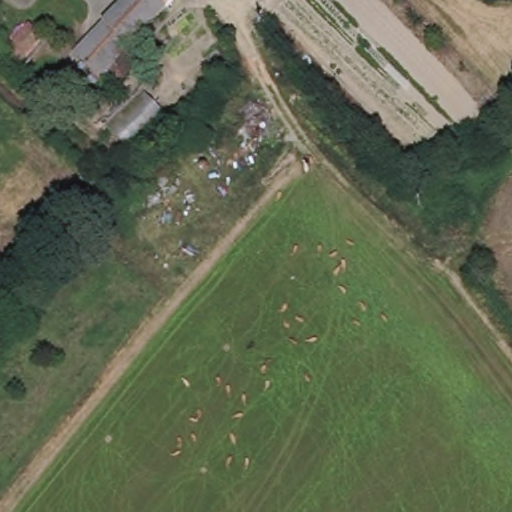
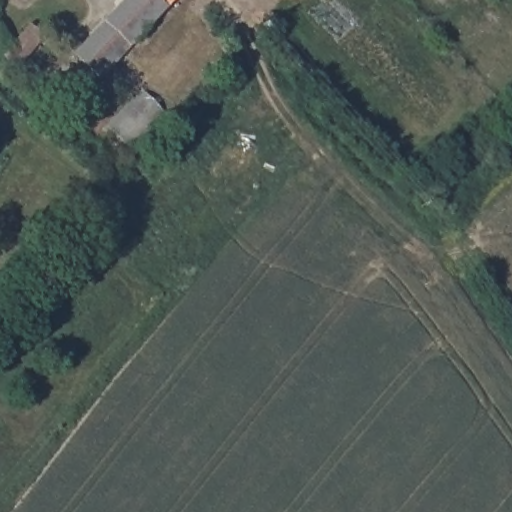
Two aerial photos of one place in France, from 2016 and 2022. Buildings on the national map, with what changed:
unchanged [(77,51),(125,0),(176,0),(106,76),(77,51)]
unchanged [(49,34),(20,63),(4,49),(33,19),(49,34)]

